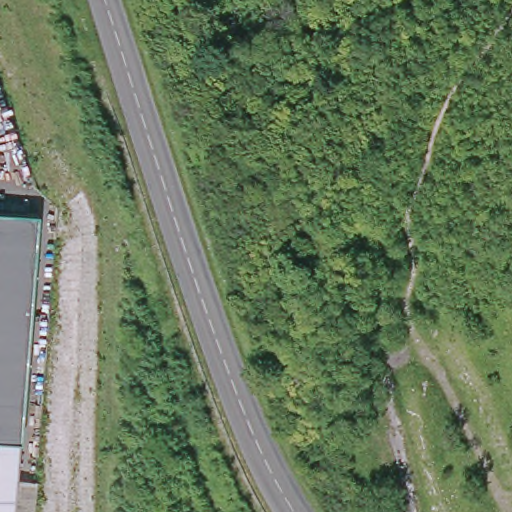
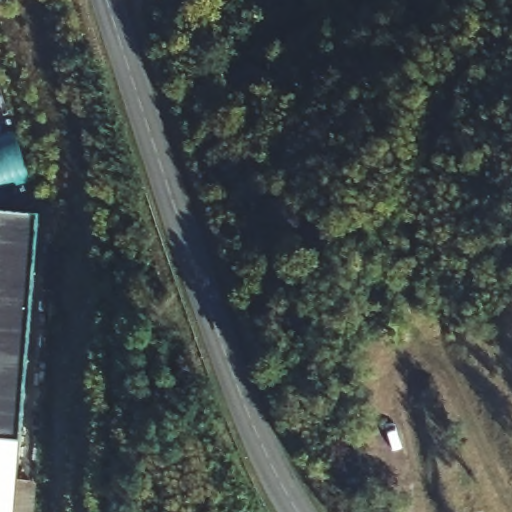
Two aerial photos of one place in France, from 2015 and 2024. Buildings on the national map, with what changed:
unchanged [(20,441),(18,482),(37,483),(35,512),(0,512),(0,214),(39,217),(20,441)]

